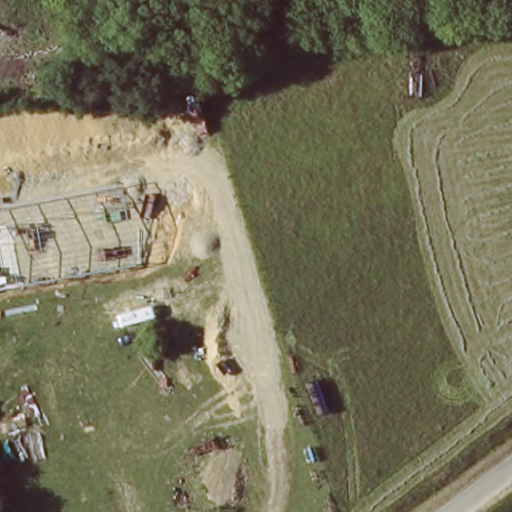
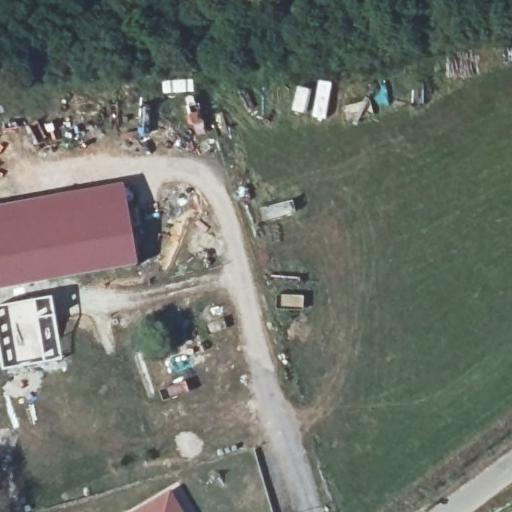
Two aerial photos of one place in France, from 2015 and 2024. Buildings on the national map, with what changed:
new [(122,184),(138,265),(0,292),(0,208),(122,184)]
new [(51,298),(63,361),(4,370),(0,352),(0,308),(51,298)]
new [(171,490),(184,512),(135,512),(171,490)]

